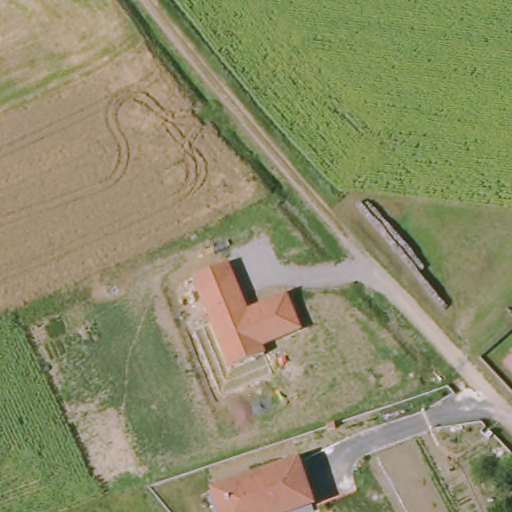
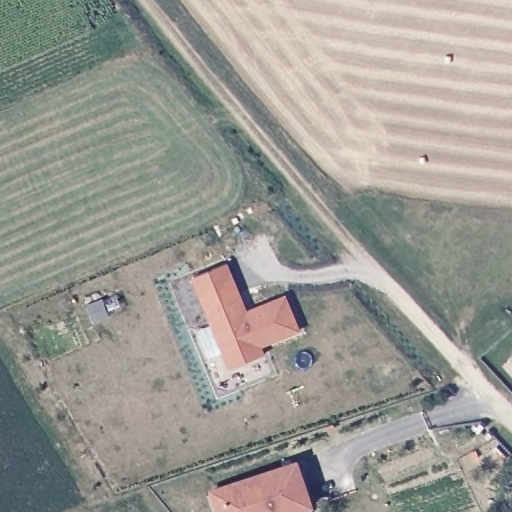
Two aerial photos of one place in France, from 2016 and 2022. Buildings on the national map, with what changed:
unchanged [(248,308),(288,293),(301,331),(263,347),(266,355),(228,368),(192,278),(230,265),(248,308)]
unchanged [(512,348),(512,366),(503,355),(512,348)]
unchanged [(207,490),(297,460),(314,507),(298,512),(214,512),(207,490)]

